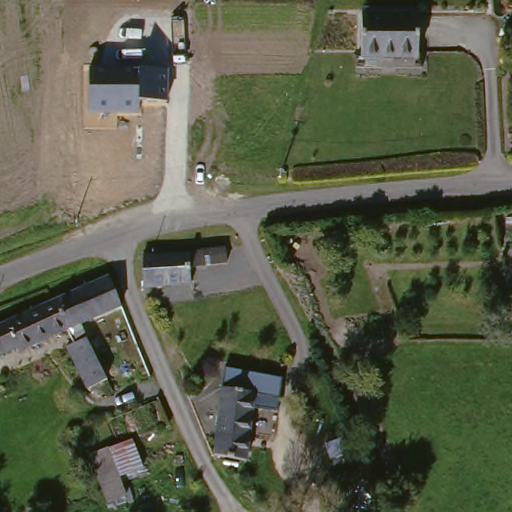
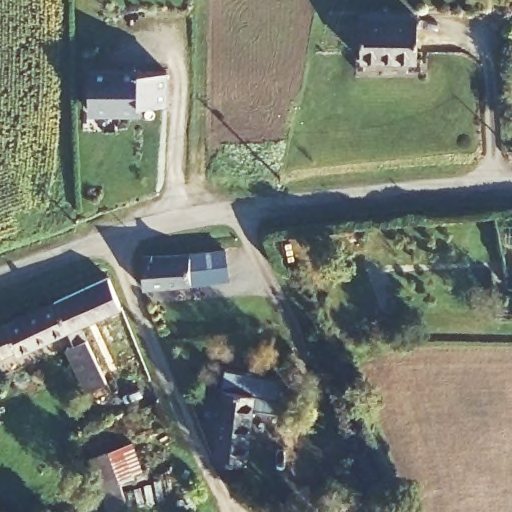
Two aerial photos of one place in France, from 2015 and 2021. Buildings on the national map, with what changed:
unchanged [(357,18),(412,18),(411,59),(357,58),(357,18)]
unchanged [(168,103),(138,102),(138,116),(86,116),(87,69),(169,69),(168,103)]
unchanged [(216,260),(215,277),(185,276),(185,290),(142,292),(142,262),(150,260),(216,260)]
unchanged [(97,282),(110,312),(74,326),(77,342),(65,346),(58,332),(45,306),(97,282)]
unchanged [(0,360),(0,326),(45,306),(58,332),(0,360)]
unchanged [(77,395),(58,351),(65,346),(77,342),(80,347),(91,361),(101,386),(77,395)]
unchanged [(222,387),(225,367),(281,375),(277,408),(251,405),(245,457),(214,454),(214,452),(213,449),(222,387)]
unchanged [(100,508),(81,464),(101,455),(124,444),(138,473),(114,484),(120,500),(100,508)]

